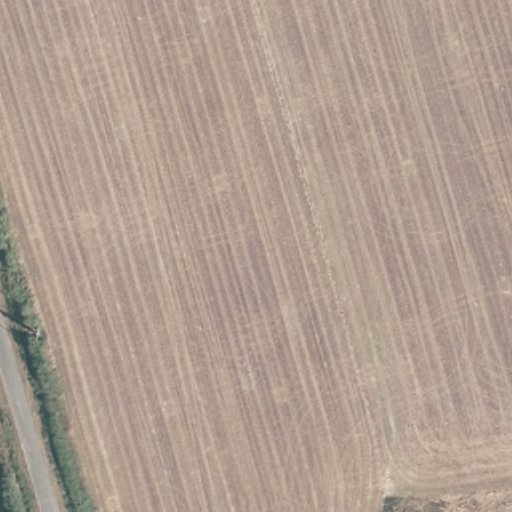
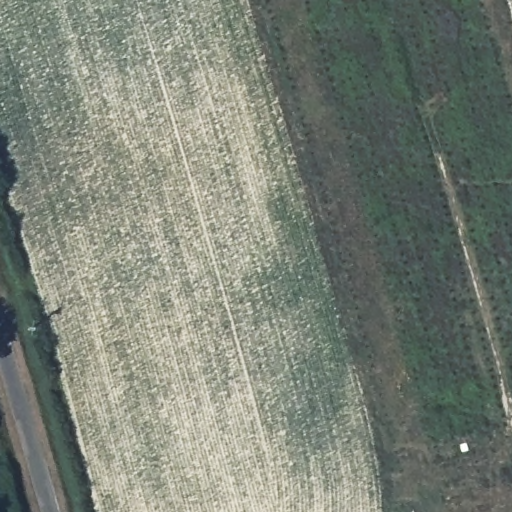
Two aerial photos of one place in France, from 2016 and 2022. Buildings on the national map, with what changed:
[]

